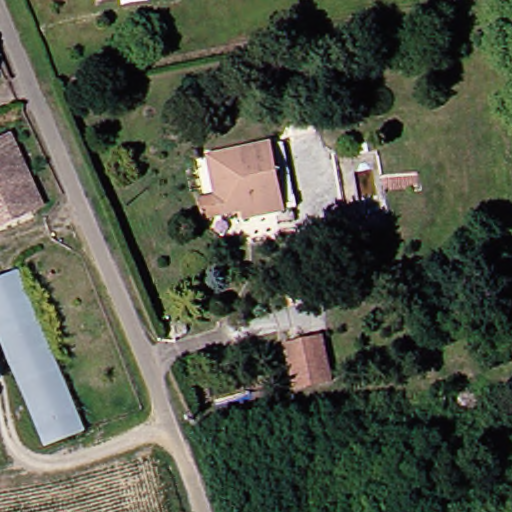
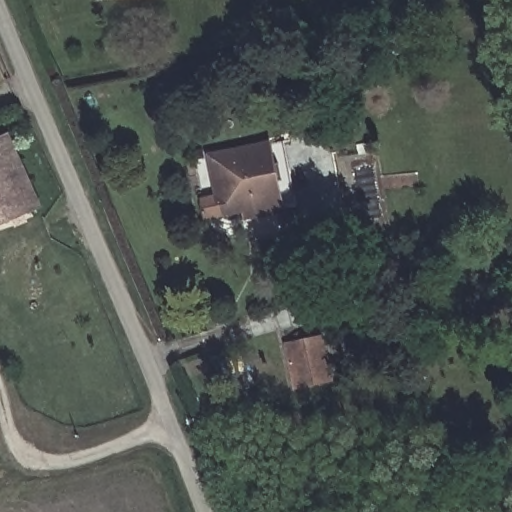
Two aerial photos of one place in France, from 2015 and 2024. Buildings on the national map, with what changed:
unchanged [(8,134),(40,204),(0,222),(0,138),(8,134)]
unchanged [(246,213),(243,201),(223,205),(205,208),(202,191),(220,187),(213,150),(269,139),(279,194),(281,207),(246,213)]
demolished [(0,337),(0,275),(18,267),(84,428),(45,443),(0,337)]
unchanged [(297,383),(286,338),(329,327),(341,372),(297,383)]

